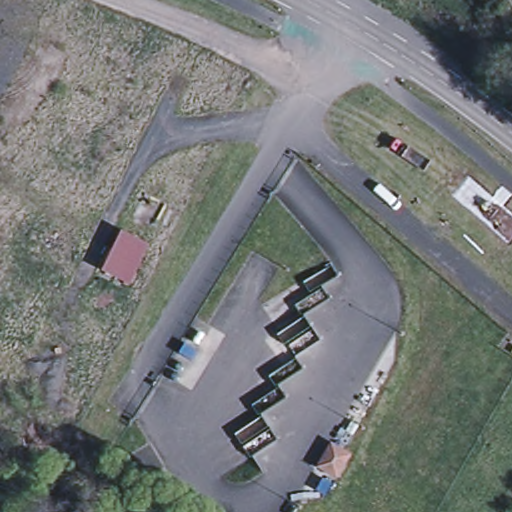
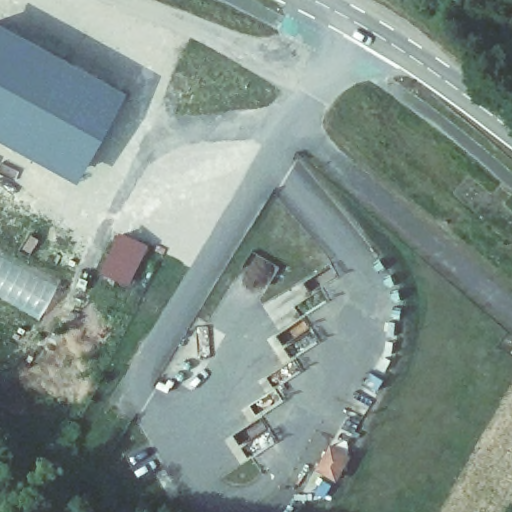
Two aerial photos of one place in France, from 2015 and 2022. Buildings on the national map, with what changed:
new [(73,169),(0,129),(0,22),(118,89),(73,169)]
unchanged [(148,244),(130,280),(105,268),(124,231),(148,244)]
unchanged [(331,443),(348,454),(334,476),(318,464),(331,443)]

